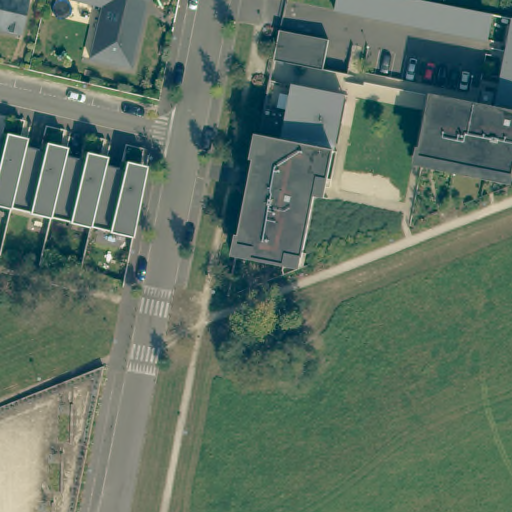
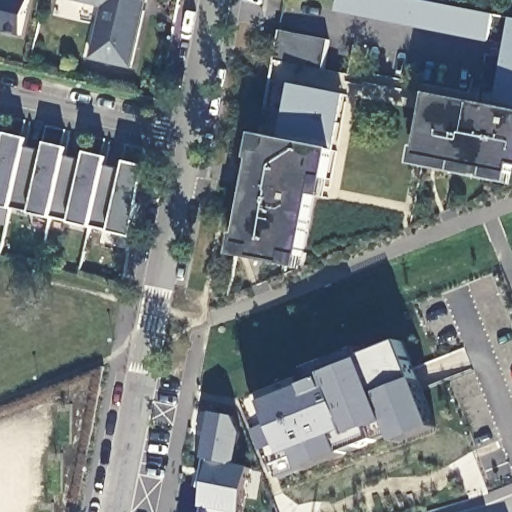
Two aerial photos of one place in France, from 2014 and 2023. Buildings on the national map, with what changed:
unchanged [(0,30),(0,0),(29,0),(21,35),(0,30)]
unchanged [(95,58),(107,6),(79,0),(152,0),(149,10),(136,68),(95,58)]
unchanged [(493,14),(488,40),(334,10),(336,0),(418,0),(423,1),(493,14)]
unchanged [(495,108),(506,51),(512,24),(512,175),(423,158),(432,111),(435,96),(476,104),(495,108)]
unchanged [(328,40),(323,69),(323,70),(273,60),(277,43),(279,31),(328,40)]
unchanged [(344,95),(338,123),(327,179),(318,178),(302,257),(286,254),(284,264),(251,258),(253,248),(237,244),(257,141),(258,136),(283,141),(288,113),(294,85),(334,93),(344,95)]
unchanged [(0,206),(0,141),(25,146),(10,209),(0,206)]
unchanged [(25,146),(65,155),(50,218),(10,209),(25,146)]
unchanged [(65,155),(105,165),(97,198),(90,228),(50,218),(65,155)]
unchanged [(97,198),(105,165),(145,174),(133,238),(90,228),(97,198)]
new [(312,377),(310,370),(361,349),(364,361),(403,342),(417,381),(436,428),(396,444),(387,422),(369,429),(374,441),(345,454),(322,462),(300,471),(281,476),(277,466),(250,402),(312,377)]
new [(205,489),(198,486),(202,459),(210,412),(233,416),(242,433),(236,464),(250,468),(240,512),(200,512),(205,489)]

